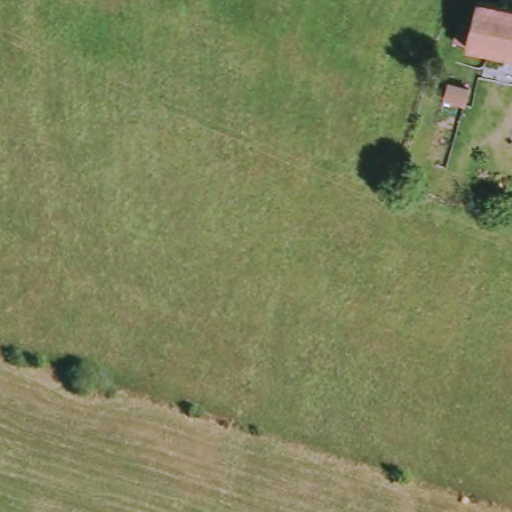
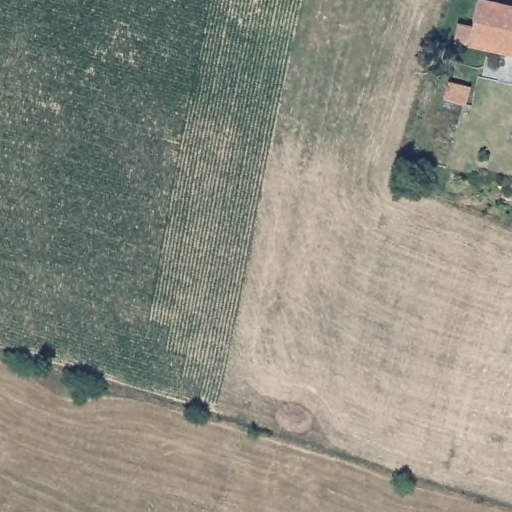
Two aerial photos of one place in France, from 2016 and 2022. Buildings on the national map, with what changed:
unchanged [(460,42),(463,25),(479,28),(486,3),(512,9),(512,55),(460,42)]
unchanged [(449,80),(471,86),(466,104),(446,97),(449,80)]

